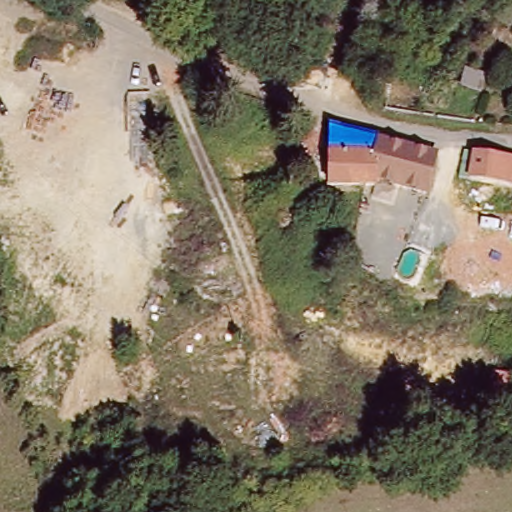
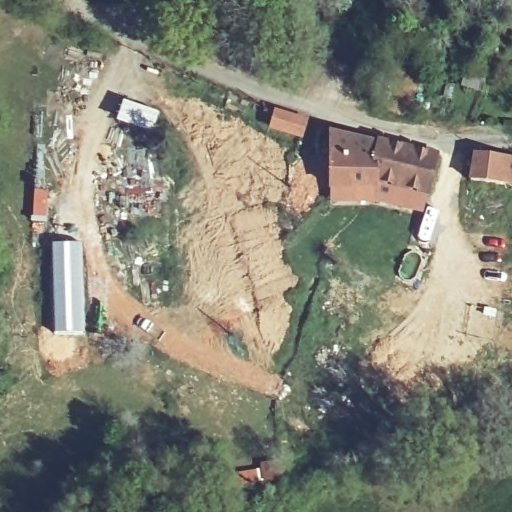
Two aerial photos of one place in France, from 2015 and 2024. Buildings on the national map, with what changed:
unchanged [(371,196),(327,194),(328,165),(329,138),(366,145),(371,196)]
unchanged [(405,195),(375,190),(371,196),(366,145),(404,154),(405,195)]
unchanged [(404,154),(435,160),(428,200),(405,195),(404,154)]
unchanged [(512,191),(467,181),(473,154),(512,161),(512,191)]
new [(83,333),(55,335),(52,245),(80,244),(83,333)]

